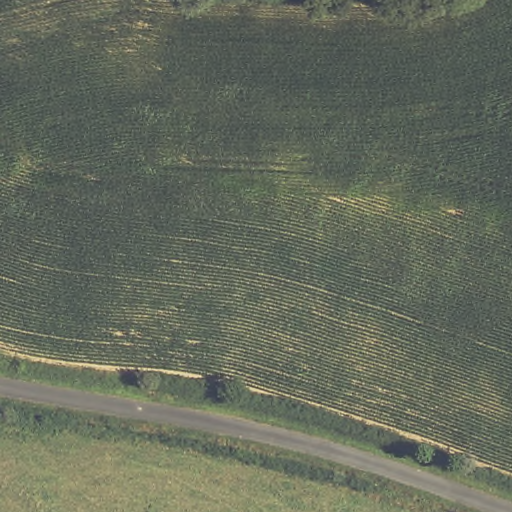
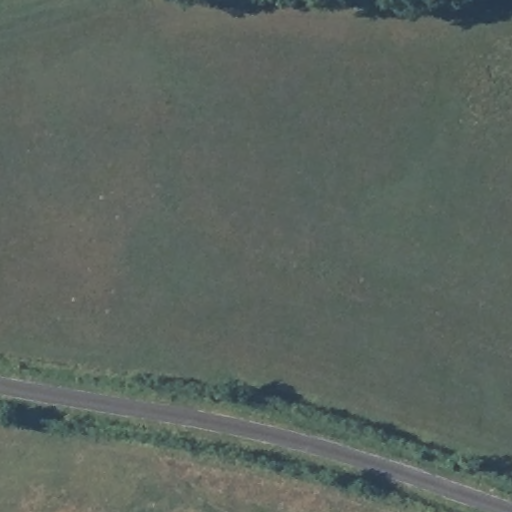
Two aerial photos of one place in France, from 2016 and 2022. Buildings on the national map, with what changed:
[]

